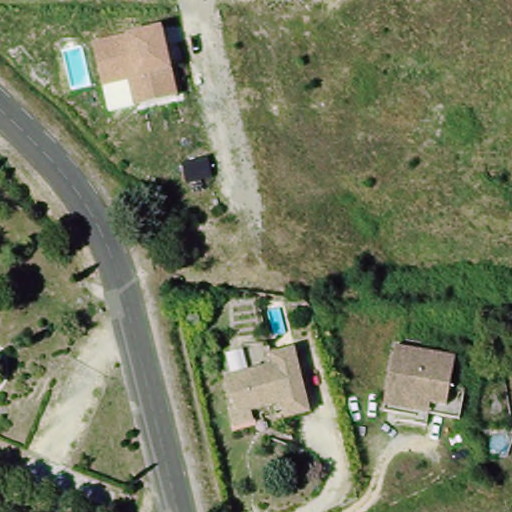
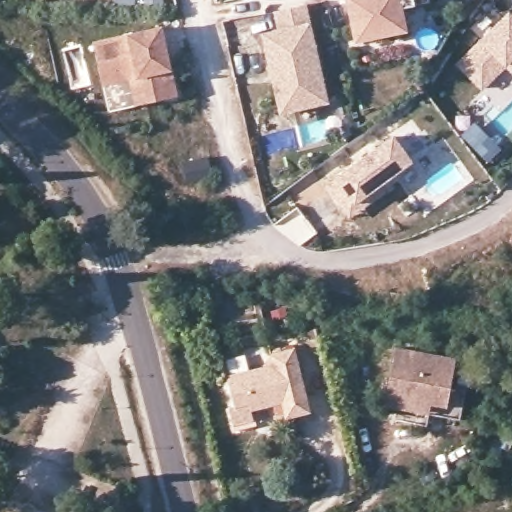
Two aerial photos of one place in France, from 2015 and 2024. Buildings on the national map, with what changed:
new [(299,121),(295,105),(282,109),(264,31),(280,27),(276,6),(305,0),(329,96),(316,100),(321,115),(299,121)]
new [(359,36),(350,0),(418,0),(402,4),(407,24),(389,29),(359,36)]
new [(504,8),(512,15),(512,71),(499,59),(476,84),(452,61),(504,8)]
unchanged [(133,69),(99,74),(91,44),(158,30),(174,98),(141,106),(133,69)]
new [(348,215),(342,208),(333,195),(324,183),(336,174),(393,132),(411,158),(376,183),(383,190),(348,215)]
new [(211,155),(215,175),(191,180),(186,160),(211,155)]
unchanged [(243,426),(236,404),(241,401),(234,371),(277,359),(276,349),(296,344),(314,409),(291,414),(287,401),(258,406),(259,423),(243,426)]
unchanged [(444,414),(398,408),(405,346),(463,355),(458,382),(472,384),(469,414),(455,413),(444,412),(444,414)]

